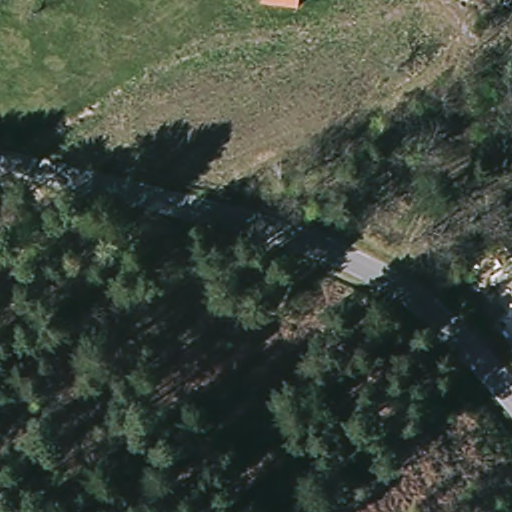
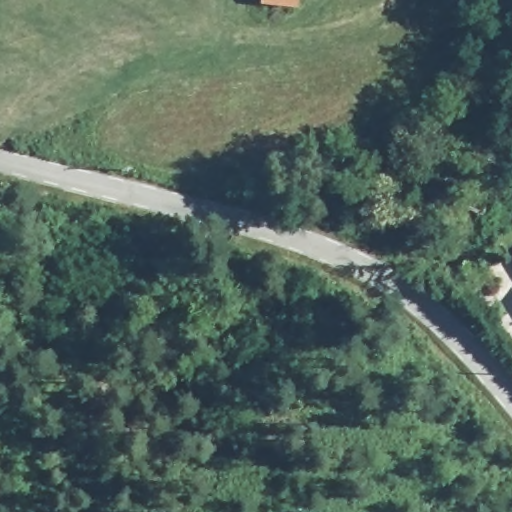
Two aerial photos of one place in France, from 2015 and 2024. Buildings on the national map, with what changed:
unchanged [(296,6),(259,4),(260,0),(297,0),(296,6)]

